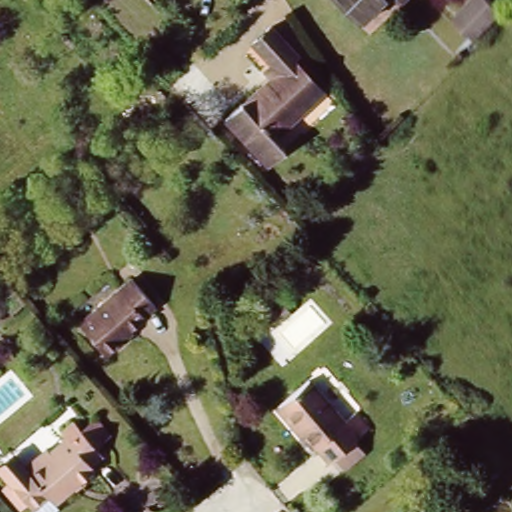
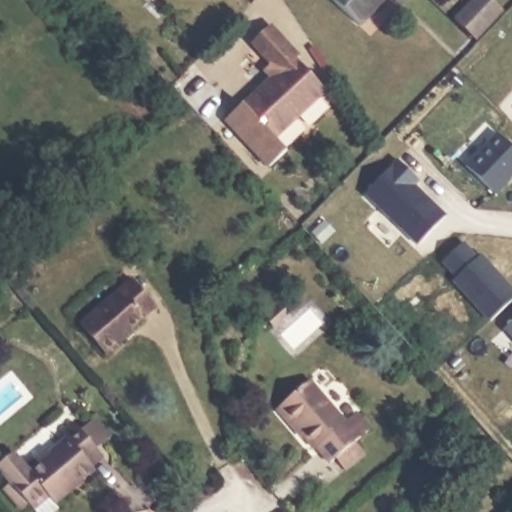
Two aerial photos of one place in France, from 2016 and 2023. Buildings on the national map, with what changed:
unchanged [(361,21),(340,0),(382,0),(361,21)]
unchanged [(404,5),(400,0),(409,0),(404,5)]
unchanged [(449,24),(473,0),(485,0),(491,7),(459,36),(449,24)]
unchanged [(241,45),(266,21),(293,51),(288,56),(311,80),(261,125),(239,101),(268,74),(241,45)]
unchanged [(261,125),(311,80),(324,93),(271,137),(286,153),(266,167),(221,118),(239,101),(261,125)]
new [(498,134),(512,147),(512,178),(496,195),(467,167),(498,134)]
new [(417,245),(364,193),(396,157),(419,180),(415,185),(444,215),(417,245)]
new [(463,244),(478,259),(481,256),(512,290),(512,302),(491,321),(454,281),(458,277),(443,262),(463,244)]
unchanged [(149,305),(120,332),(128,340),(107,359),(76,326),(125,280),(149,305)]
new [(512,322),(512,337),(505,329),(512,322)]
unchanged [(307,448),(273,411),(308,377),(343,415),(356,403),(376,425),(363,437),(355,445),(360,450),(339,470),(313,442),(307,448)]
unchanged [(56,504),(63,511),(61,512),(33,512),(0,475),(0,449),(27,479),(67,442),(58,432),(73,418),(83,428),(97,414),(113,431),(98,445),(108,456),(56,504)]

